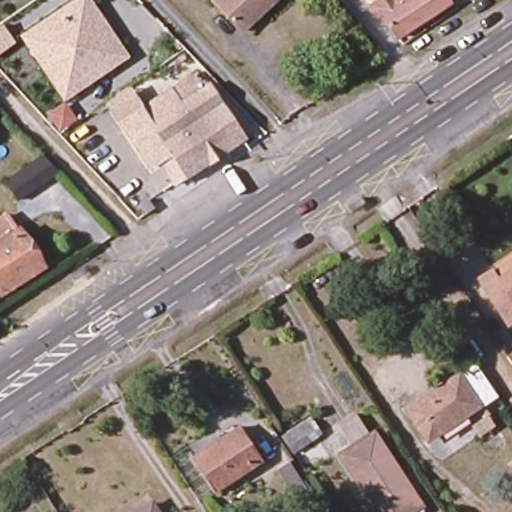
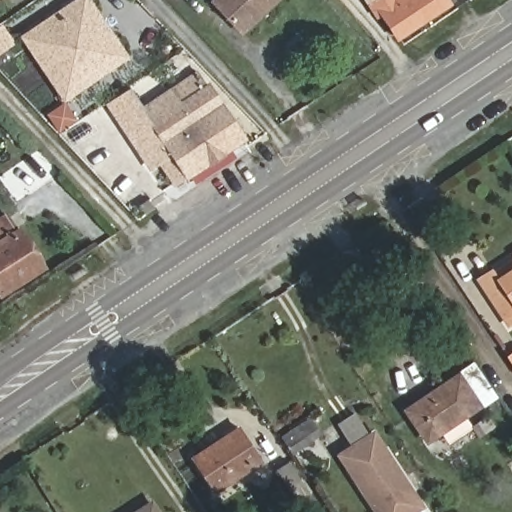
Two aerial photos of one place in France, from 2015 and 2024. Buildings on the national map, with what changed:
unchanged [(131,59),(69,102),(80,119),(60,132),(48,112),(64,101),(21,37),(78,0),(92,0),(131,59)]
unchanged [(242,32),(213,0),(214,0),(276,0),(242,32)]
unchanged [(371,0),(376,0),(373,2),(371,0)]
unchanged [(449,4),(421,22),(396,38),(373,2),(376,0),(446,0),(449,4)]
unchanged [(18,44),(0,57),(0,27),(4,24),(18,44)]
unchanged [(120,122),(108,103),(112,100),(128,89),(141,109),(171,88),(180,103),(208,85),(244,140),(185,177),(174,184),(159,162),(150,168),(138,148),(120,122)]
unchanged [(16,202),(3,182),(41,155),(58,173),(17,202),(16,202)]
unchanged [(139,206),(149,200),(155,209),(145,215),(139,206)]
unchanged [(48,263),(5,289),(4,287),(0,290),(0,217),(10,210),(20,225),(23,224),(48,263)]
unchanged [(503,317),(478,280),(492,271),(498,279),(512,270),(512,311),(503,317)]
unchanged [(507,358),(512,354),(512,366),(507,358)]
unchanged [(405,410),(458,375),(474,364),(496,395),(479,406),(427,442),(405,410)]
unchanged [(280,433),(309,415),(325,439),(315,450),(320,462),(304,476),(313,493),(292,506),(274,476),(297,465),(280,433)]
unchanged [(344,430),(361,419),(374,440),(379,438),(426,512),(383,512),(375,500),(371,502),(353,474),(357,471),(348,457),(358,451),(344,430)]
unchanged [(193,458),(237,429),(259,462),(215,491),(193,458)]
unchanged [(157,512),(137,512),(151,503),(157,512)]

